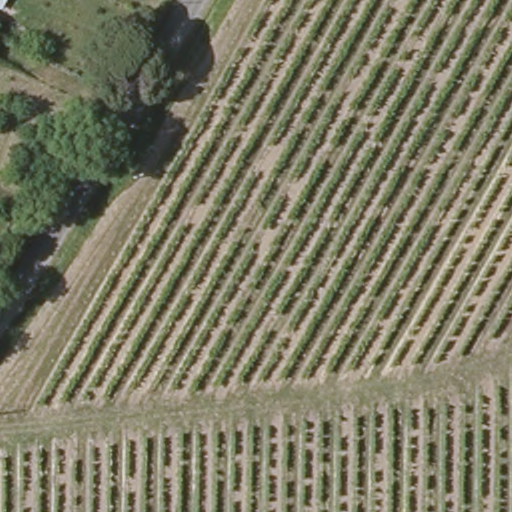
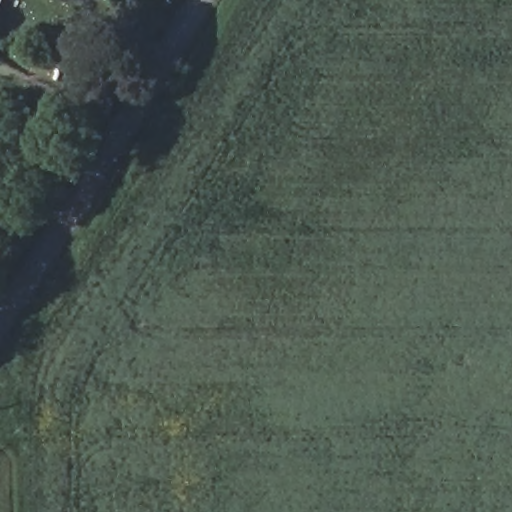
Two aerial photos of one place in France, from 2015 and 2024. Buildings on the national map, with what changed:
[]

